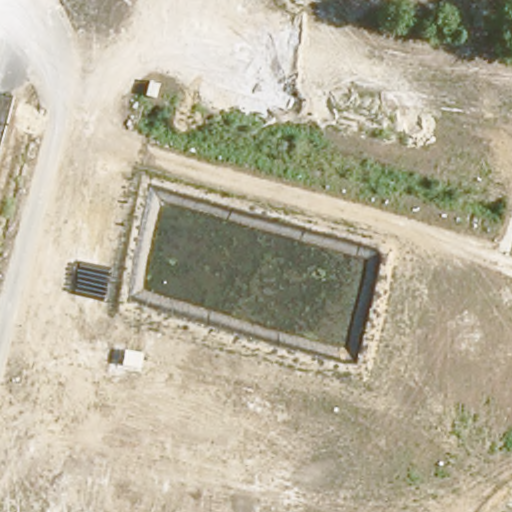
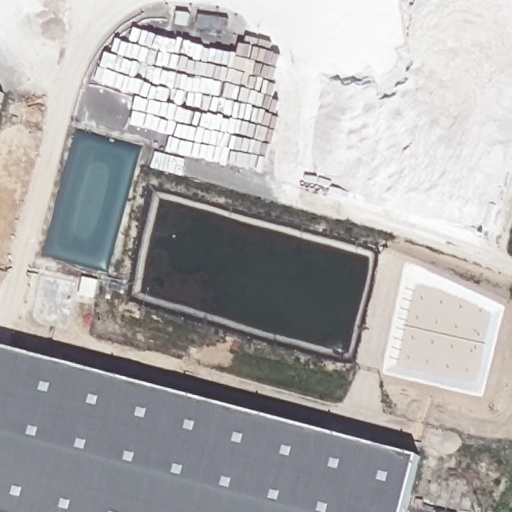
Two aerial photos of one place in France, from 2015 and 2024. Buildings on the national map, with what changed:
unchanged [(0,93),(15,98),(6,130),(0,129),(0,93)]
unchanged [(0,152),(0,129),(6,130),(0,152)]
new [(405,512),(0,512),(0,347),(419,458),(405,512)]

